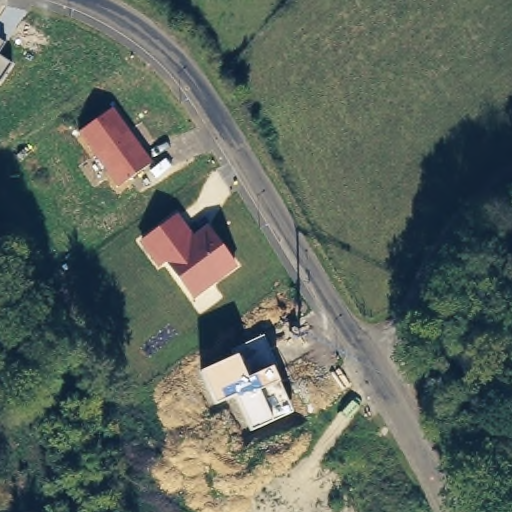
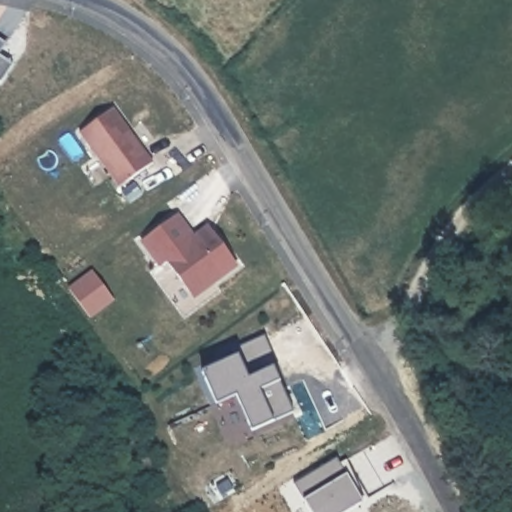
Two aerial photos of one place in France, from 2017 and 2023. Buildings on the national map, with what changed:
unchanged [(4,43),(0,49),(0,40),(4,43)]
unchanged [(12,65),(0,82),(0,56),(12,65)]
unchanged [(152,162),(117,187),(78,133),(114,108),(152,162)]
unchanged [(237,267),(192,299),(165,262),(159,268),(140,242),(179,214),(193,233),(207,224),(237,267)]
new [(68,287),(92,270),(114,301),(90,318),(68,287)]
unchanged [(277,365),(273,366),(292,411),(252,429),(235,395),(215,403),(201,371),(235,355),(232,350),(264,335),(277,365)]
new [(310,512),(302,500),(293,483),(335,458),(346,475),(362,502),(345,512),(310,512)]

